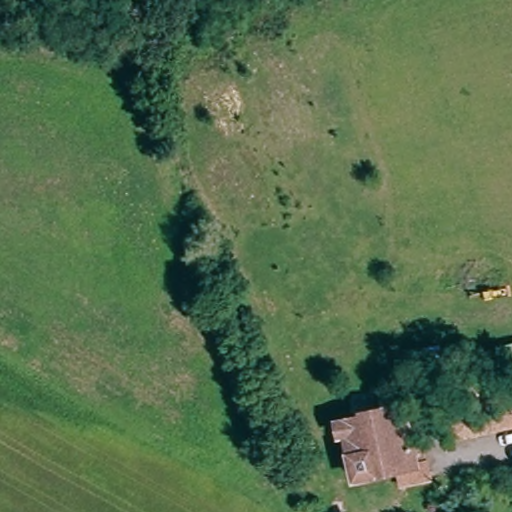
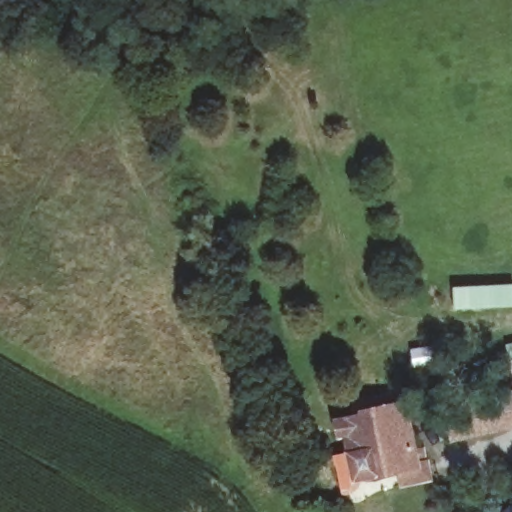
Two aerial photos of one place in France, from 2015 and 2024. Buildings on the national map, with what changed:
new [(512,284),(512,308),(453,312),(451,287),(512,284)]
new [(506,344),(512,343),(512,371),(506,344)]
unchanged [(512,390),(512,428),(439,448),(431,410),(512,390)]
unchanged [(407,395),(417,443),(428,440),(432,459),(357,475),(353,476),(336,416),(343,415),(363,411),(362,404),(402,396),(407,395)]

